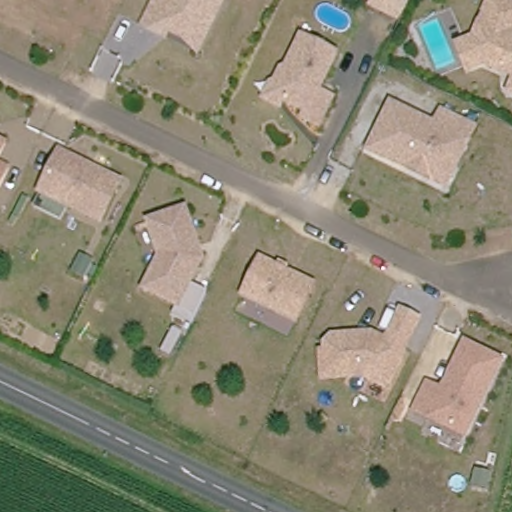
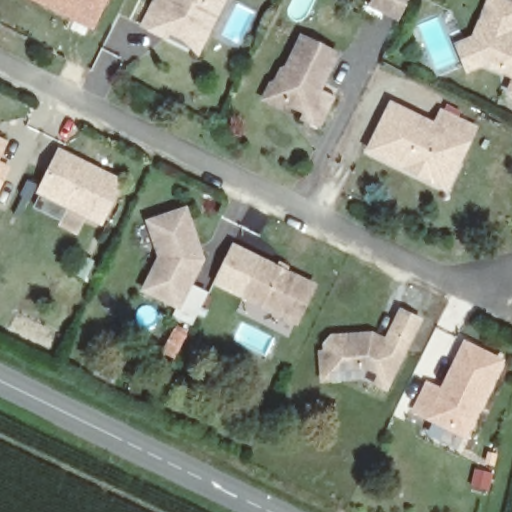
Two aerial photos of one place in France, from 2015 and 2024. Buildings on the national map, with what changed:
new [(93,31),(30,0),(108,0),(93,31)]
unchanged [(160,36),(145,29),(158,0),(172,0),(174,1),(174,0),(226,0),(220,14),(200,54),(160,36)]
unchanged [(398,16),(369,3),(370,0),(405,0),(398,16)]
unchanged [(261,104),(270,85),(276,89),(299,39),(333,54),(317,90),(332,97),(318,126),(303,120),(306,112),(284,102),(280,112),(261,104)]
unchanged [(401,170),(367,154),(388,107),(432,127),(438,113),(471,129),(456,162),(444,189),(401,170)]
unchanged [(9,140),(0,160),(13,165),(0,195),(0,137),(9,140)]
unchanged [(37,210),(43,195),(41,195),(59,154),(82,164),(89,167),(123,182),(105,224),(69,207),(63,221),(37,210)]
unchanged [(181,209),(199,258),(188,285),(206,293),(202,302),(194,323),(174,315),(179,303),(146,288),(160,255),(147,222),(181,209)]
unchanged [(258,262),(313,285),(298,321),(243,298),(258,262)]
unchanged [(102,273),(95,288),(82,282),(88,267),(102,273)]
unchanged [(405,307),(423,315),(394,383),(370,372),(331,376),(328,351),(334,350),(332,341),(338,335),(376,330),(392,337),(405,307)]
unchanged [(502,360),(469,436),(418,413),(429,386),(443,393),(465,344),(502,360)]
unchanged [(501,482),(498,498),(482,495),(485,480),(501,482)]

